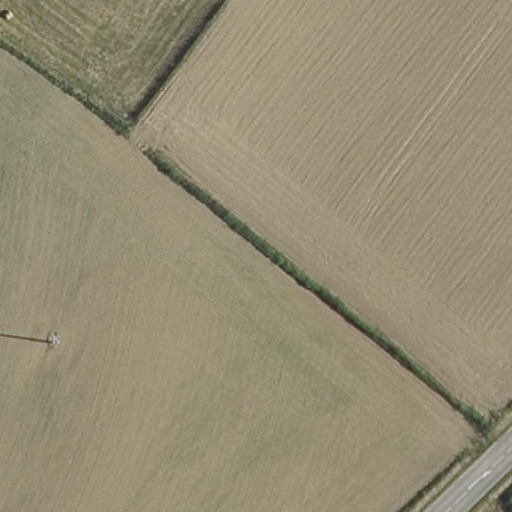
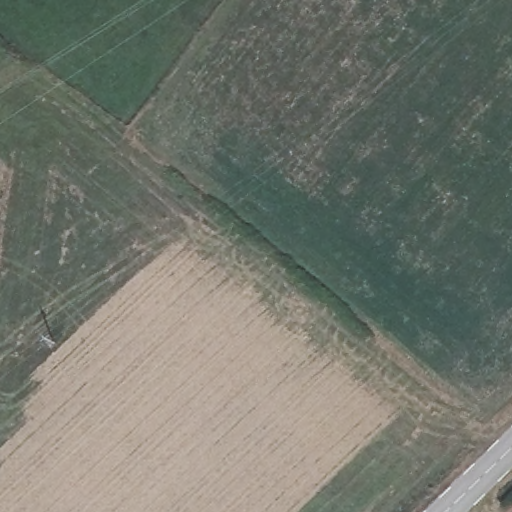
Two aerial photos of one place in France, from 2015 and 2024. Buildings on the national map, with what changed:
[]

